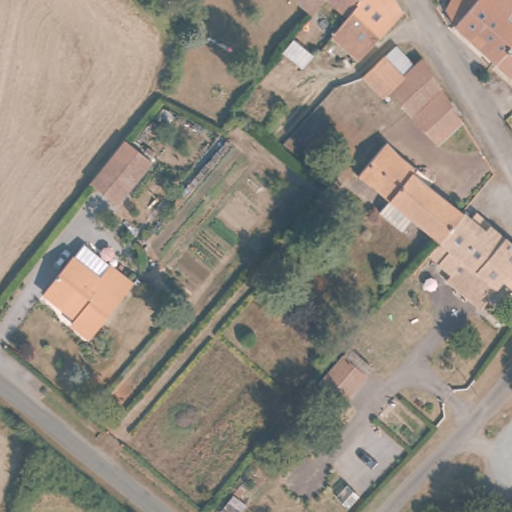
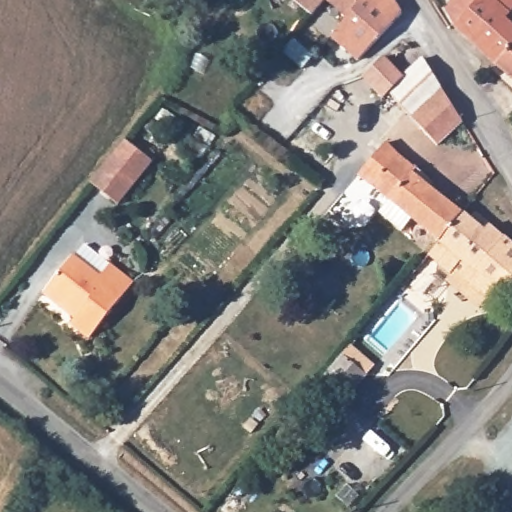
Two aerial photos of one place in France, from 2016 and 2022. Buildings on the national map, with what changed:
unchanged [(326,0),(356,0),(344,14),(326,0)]
unchanged [(359,58),(329,32),(339,21),(344,14),(356,0),(393,0),(403,10),(377,38),(373,42),(359,58)]
unchanged [(500,66),(451,22),(448,16),(455,0),(512,0),(512,52),(500,66)]
unchanged [(500,66),(512,52),(512,78),(500,66)]
unchanged [(427,59),(433,70),(432,71),(412,92),(403,101),(395,92),(384,101),(364,79),(385,60),(404,83),(427,59)]
unchanged [(440,96),(462,124),(435,144),(413,119),(417,115),(440,96)]
unchanged [(454,278),(430,260),(442,245),(414,221),(402,234),(381,216),(391,204),(359,177),(342,163),(372,129),(391,145),(405,155),(422,169),(418,174),(468,215),(489,232),(493,227),(512,243),(512,280),(510,278),(489,302),(476,317),(444,291),(454,278)]
unchanged [(131,142),(158,165),(121,206),(95,184),(131,142)]
unchanged [(105,280),(115,268),(138,288),(91,340),(73,325),(80,317),(66,305),(64,308),(46,293),(78,257),(105,280)]
unchanged [(506,319),(503,325),(483,317),(487,310),(506,319)]
unchanged [(375,375),(350,402),(324,382),(349,353),(375,375)]

